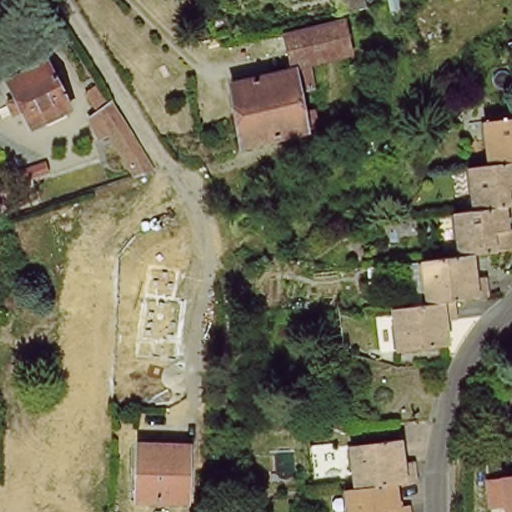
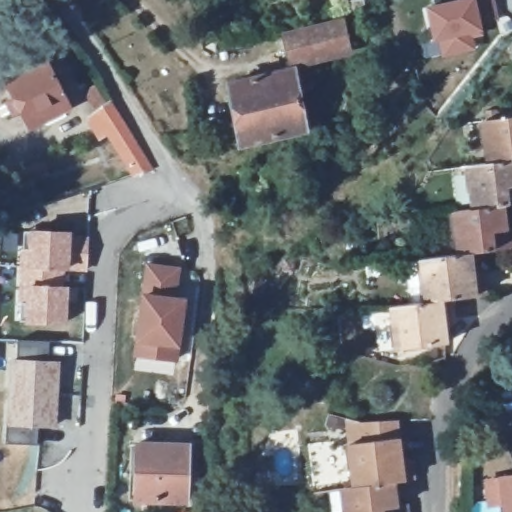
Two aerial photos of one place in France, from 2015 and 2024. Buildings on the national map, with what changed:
new [(484,31),(485,37),(476,39),(478,49),(445,57),(440,41),(435,42),(426,7),(436,4),(435,0),(476,0),(484,31)]
unchanged [(296,64),(290,34),(349,20),(355,50),(313,60),(318,87),(303,90),(307,112),(318,110),(321,127),(311,129),(247,144),(236,84),(298,70),(296,64)]
unchanged [(12,101),(21,97),(12,80),(52,60),(76,107),(36,127),(28,110),(19,115),(12,101)]
unchanged [(164,170),(147,176),(119,132),(110,138),(99,118),(108,111),(96,93),(106,86),(118,104),(121,102),(164,170)]
unchanged [(484,120),(500,118),(500,112),(512,111),(512,161),(505,162),(489,163),(484,120)]
unchanged [(477,209),(475,209),(469,166),(489,163),(505,162),(512,161),(512,205),(504,205),(477,209)]
unchanged [(504,205),(506,229),(512,229),(512,248),(471,253),(460,254),(455,211),(475,209),(477,209),(504,205)]
unchanged [(381,245),(378,221),(396,219),(399,243),(381,245)]
new [(77,327),(76,342),(36,339),(38,325),(25,325),(19,325),(23,231),(31,231),(71,233),(70,237),(88,240),(87,271),(69,270),(68,290),(66,326),(77,327)]
unchanged [(471,253),(474,277),(485,275),(488,295),(453,299),(428,302),(423,259),(460,254),(471,253)]
new [(180,349),(177,364),(134,358),(136,342),(143,293),(147,264),(182,268),(177,297),(187,299),(180,349)]
unchanged [(444,320),(446,344),(398,349),(393,306),(417,303),(428,302),(453,299),(455,318),(444,320)]
new [(12,359),(21,358),(20,341),(49,342),(49,360),(61,360),(57,428),(36,426),(37,444),(7,442),(12,359)]
unchanged [(355,486),(350,443),(348,419),(362,423),(365,423),(397,422),(399,437),(402,461),(413,460),(416,479),(394,482),(355,486)]
unchanged [(138,444),(190,446),(188,502),(137,500),(138,444)]
unchanged [(506,512),(502,476),(512,475),(512,512),(506,512)]
unchanged [(394,482),(397,505),(409,504),(409,512),(348,512),(345,488),(355,486),(394,482)]
new [(191,512),(175,512),(175,511),(191,512)]

